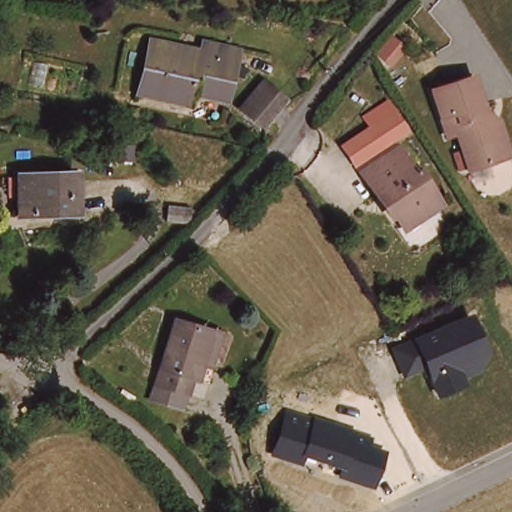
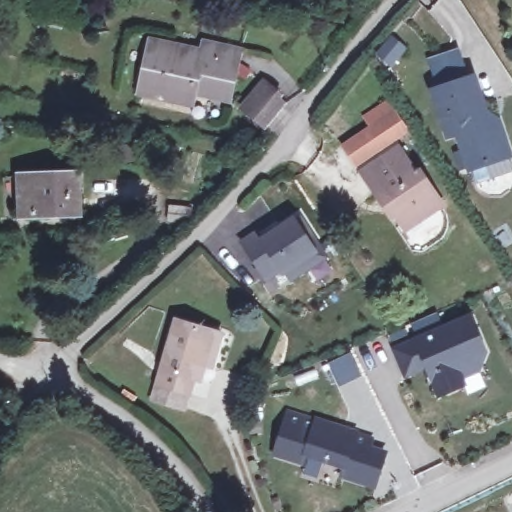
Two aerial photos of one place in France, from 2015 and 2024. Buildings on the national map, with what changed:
new [(390,38),(402,54),(381,70),(368,55),(390,38)]
unchanged [(240,51),(230,100),(195,94),(192,105),(140,95),(148,50),(150,43),(202,55),(203,44),(240,51)]
unchanged [(494,162),(464,171),(453,134),(444,137),(430,90),(472,79),(483,115),(495,122),(501,142),(506,159),(494,162)]
unchanged [(267,129),(245,112),(265,85),(282,98),(283,108),(267,129)]
unchanged [(335,145),(390,105),(405,129),(397,142),(447,202),(399,234),(335,145)]
unchanged [(79,209),(23,220),(15,180),(71,170),(79,209)]
unchanged [(190,218),(165,217),(166,202),(192,204),(190,218)]
new [(301,270),(283,280),(277,267),(260,276),(240,240),(255,231),(259,239),(275,230),(296,217),(317,250),(321,258),(301,270)]
unchanged [(490,353),(478,372),(463,378),(467,387),(435,399),(425,372),(400,380),(387,347),(472,313),(490,353)]
unchanged [(156,395),(160,380),(177,316),(217,326),(225,328),(216,362),(207,360),(203,375),(197,372),(193,388),(191,387),(187,403),(156,395)]
unchanged [(375,490),(338,479),(340,470),(305,458),(302,467),(270,457),(284,412),(372,437),(368,448),(385,452),(375,490)]

